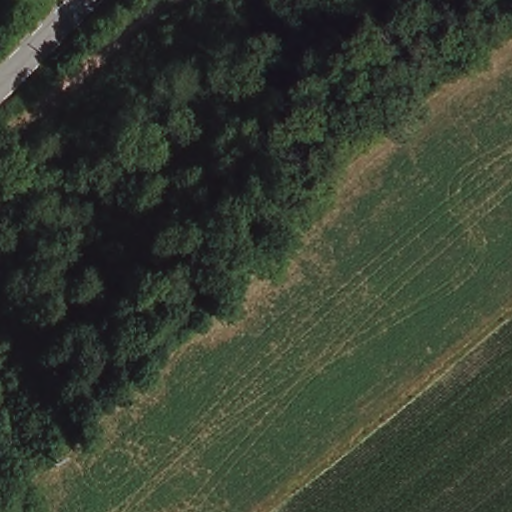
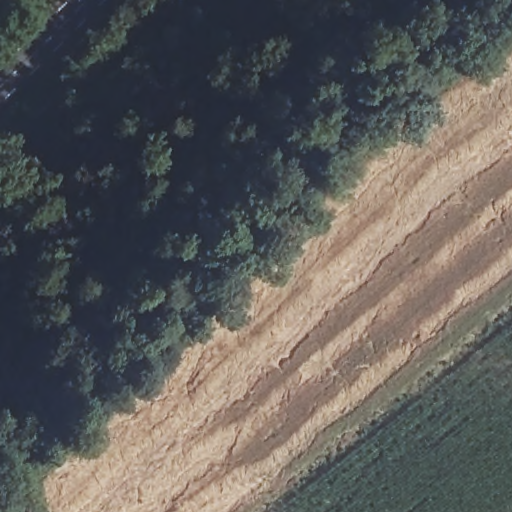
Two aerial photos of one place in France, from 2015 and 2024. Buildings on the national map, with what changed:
[]

